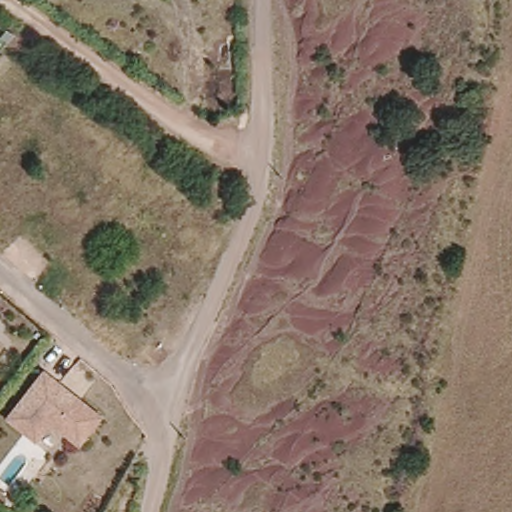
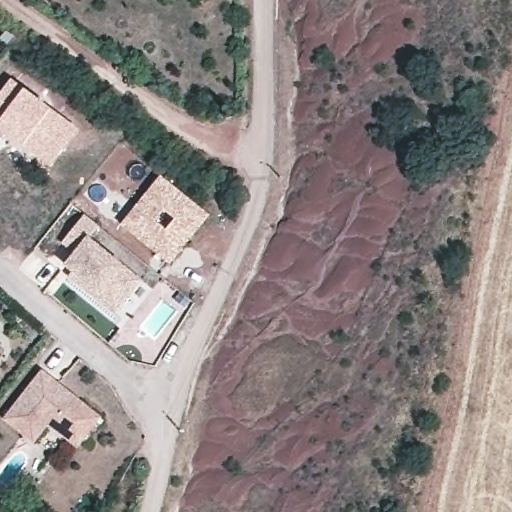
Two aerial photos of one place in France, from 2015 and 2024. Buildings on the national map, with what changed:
new [(10,77),(78,128),(48,166),(8,136),(0,130),(0,90),(10,77)]
new [(209,215),(171,265),(121,225),(160,175),(209,215)]
new [(83,206),(97,216),(87,229),(123,256),(101,285),(73,263),(66,257),(75,245),(61,234),(83,206)]
new [(73,263),(101,285),(123,256),(141,270),(115,303),(69,268),(73,263)]
unchanged [(37,375),(97,423),(75,450),(42,432),(29,449),(0,424),(0,419),(37,375)]

